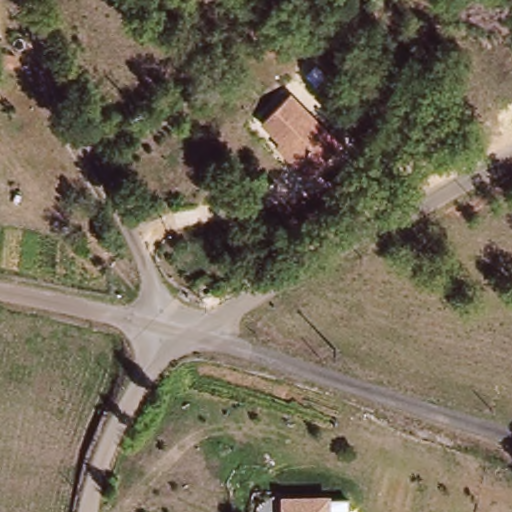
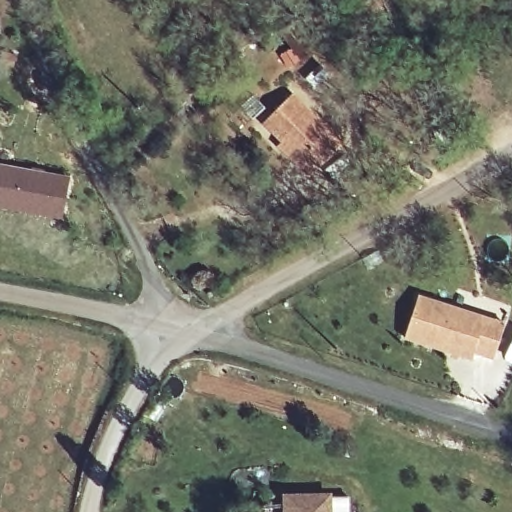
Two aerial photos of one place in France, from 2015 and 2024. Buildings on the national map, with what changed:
unchanged [(288,142),(268,124),(296,95),(347,145),(316,177),(303,165),(284,146),(288,142)]
new [(0,208),(0,164),(70,176),(64,219),(0,208)]
new [(494,360),(476,354),(473,361),(404,339),(418,295),(506,322),(494,360)]
unchanged [(334,495),(335,512),(291,512),(290,495),(334,495)]

